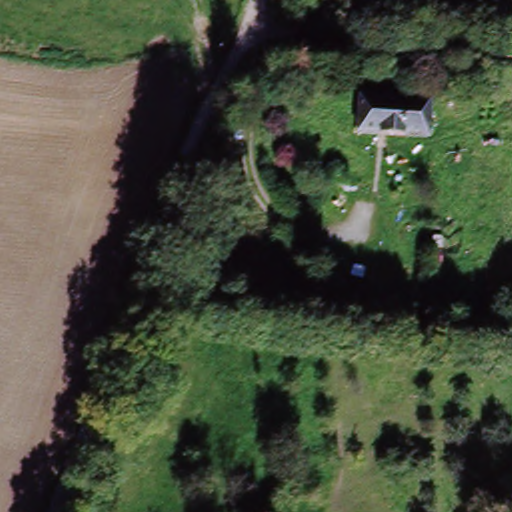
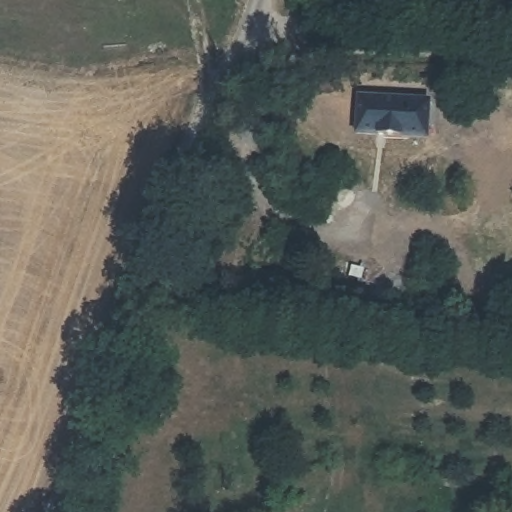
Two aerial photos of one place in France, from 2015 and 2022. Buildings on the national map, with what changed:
unchanged [(352,132),(357,94),(427,101),(422,137),(352,132)]

